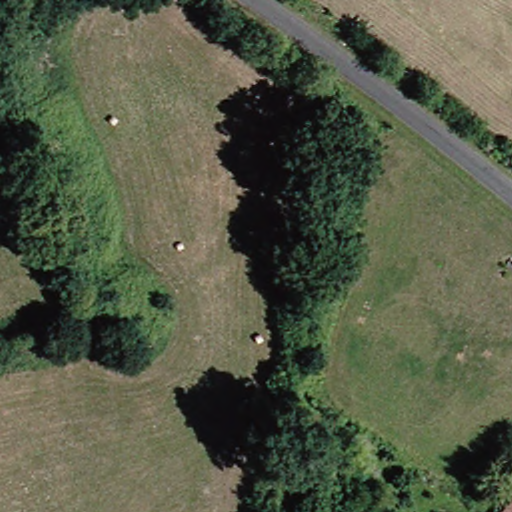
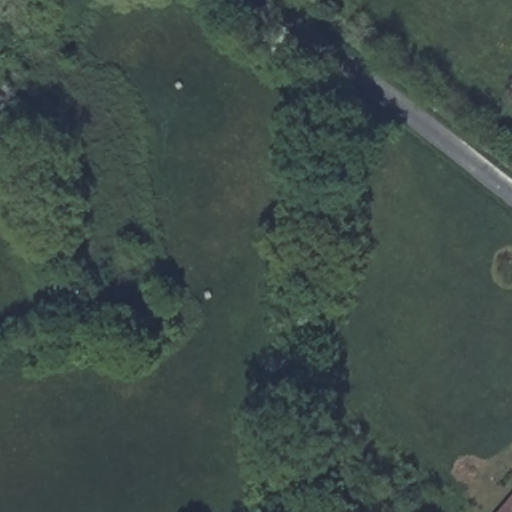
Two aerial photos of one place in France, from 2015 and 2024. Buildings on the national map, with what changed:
unchanged [(512,512),(509,512),(512,508),(512,512)]

